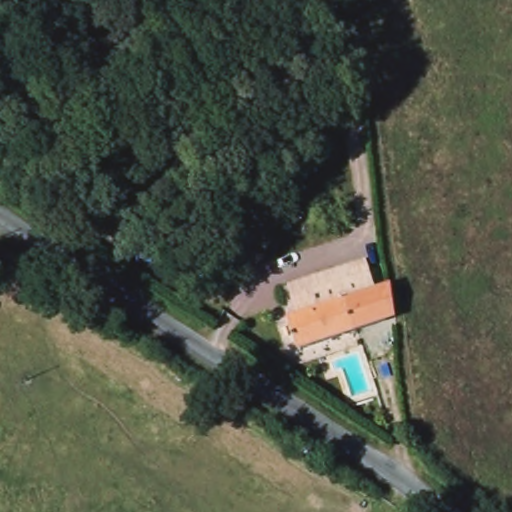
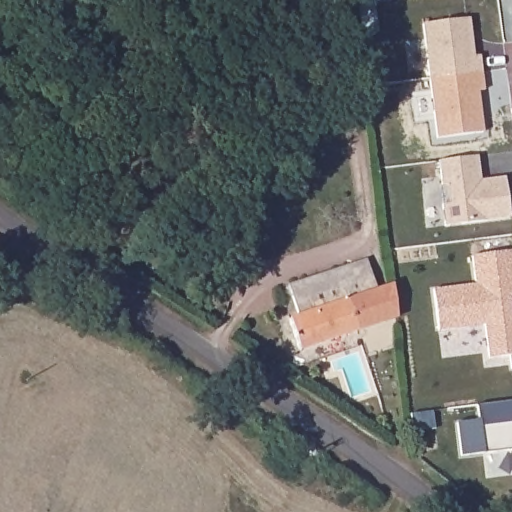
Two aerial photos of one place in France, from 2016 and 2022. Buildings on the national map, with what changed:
new [(437,136),(422,24),(470,18),(475,56),(481,56),(484,89),(479,90),(484,131),(437,136)]
new [(479,173),(480,180),(505,177),(510,218),(445,226),(442,205),(450,204),(448,185),(442,186),(439,161),(477,156),(479,173)]
new [(485,325),(438,331),(433,290),(475,285),(472,256),(512,251),(512,297),(508,297),(511,318),(512,317),(512,355),(489,358),(485,325)]
unchanged [(352,265),(367,260),(377,290),(393,285),(397,317),(372,326),(352,265)]
unchanged [(352,265),(372,326),(299,350),(289,319),(298,316),(288,286),(352,265)]
new [(460,454),(456,422),(479,419),(477,405),(512,400),(512,449),(511,449),(460,454)]

